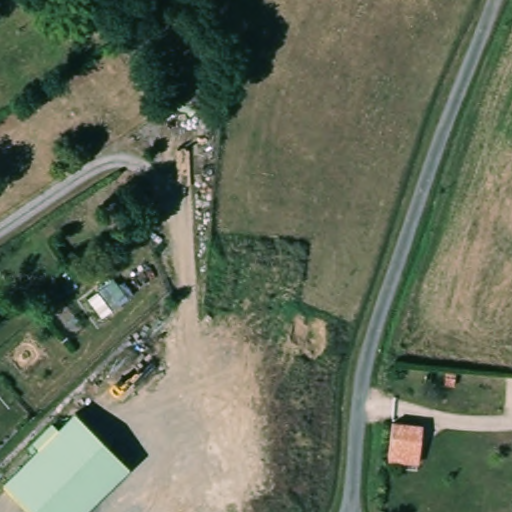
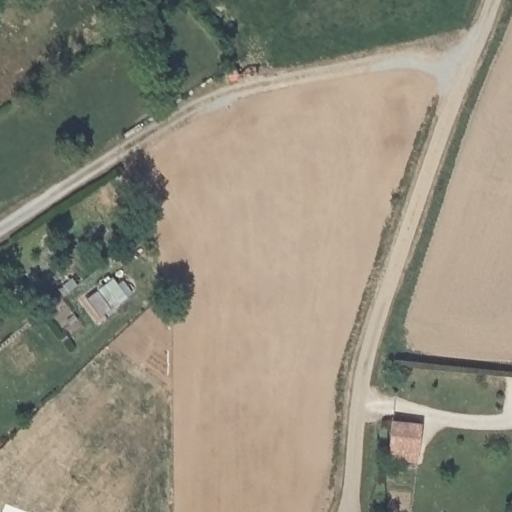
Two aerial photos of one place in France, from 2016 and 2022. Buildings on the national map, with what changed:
demolished [(35,512),(4,479),(78,410),(129,465),(78,512),(35,512)]
unchanged [(424,419),(422,456),(392,454),(395,418),(424,419)]

